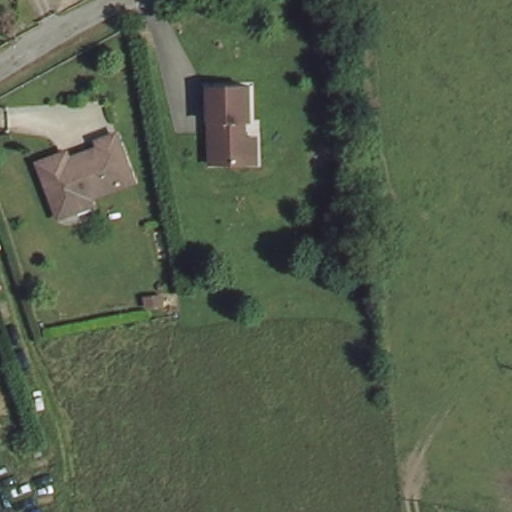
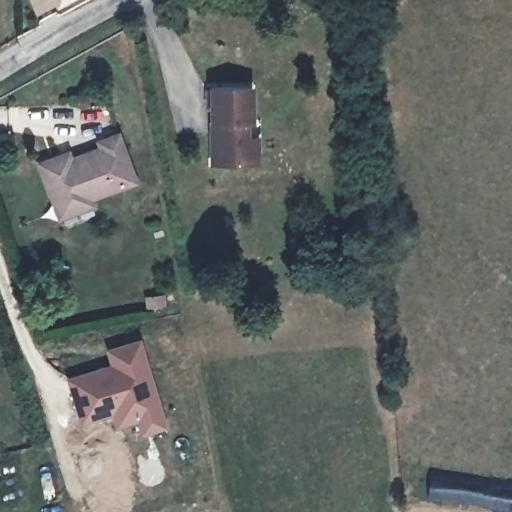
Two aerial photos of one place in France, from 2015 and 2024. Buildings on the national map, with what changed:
unchanged [(258,164),(249,163),(211,163),(213,86),(254,87),(250,137),(260,138),(258,164)]
unchanged [(60,213),(57,200),(42,160),(65,152),(68,157),(102,146),(100,141),(122,134),(138,178),(92,195),(95,202),(60,213)]
new [(108,363),(104,347),(139,336),(167,427),(139,435),(136,420),(113,427),(110,414),(78,423),(65,376),(108,363)]

